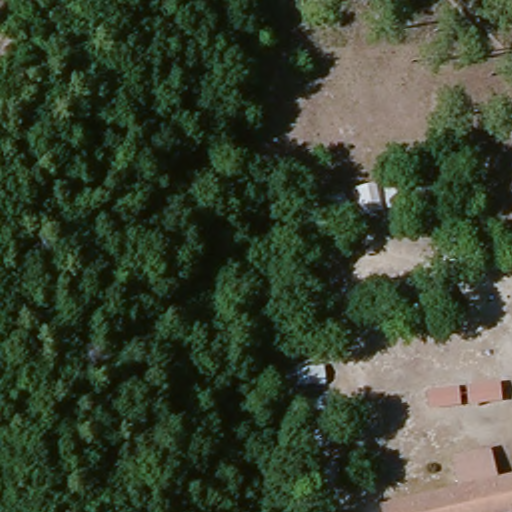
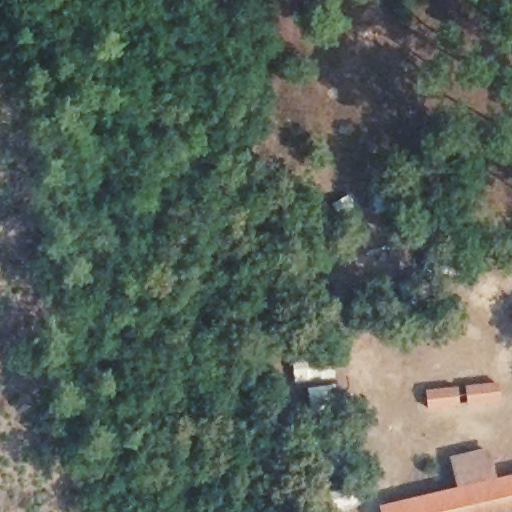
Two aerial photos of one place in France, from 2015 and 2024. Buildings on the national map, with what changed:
unchanged [(375,512),(375,510),(448,491),(442,464),(484,452),(490,480),(512,475),(512,512),(375,512)]

